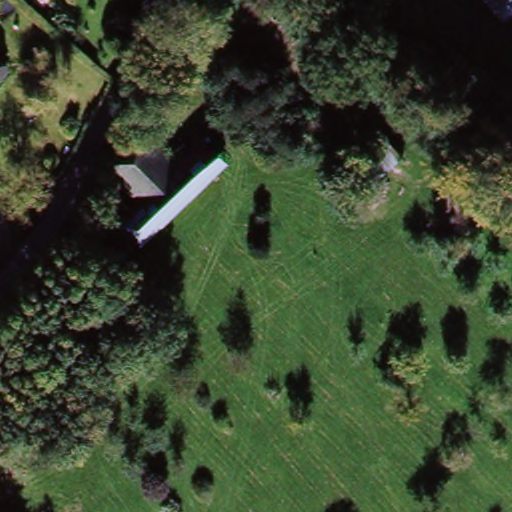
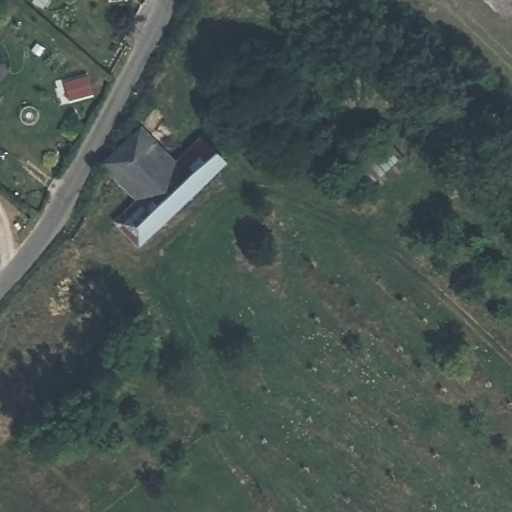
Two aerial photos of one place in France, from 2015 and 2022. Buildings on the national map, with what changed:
unchanged [(69,0),(72,0),(72,1),(69,0)]
unchanged [(485,0),(512,0),(512,4),(496,16),(485,0)]
unchanged [(7,71),(0,78),(0,64),(7,71)]
unchanged [(142,206),(103,168),(137,130),(177,170),(142,206)]
unchanged [(410,161),(393,177),(362,147),(377,133),(410,161)]
unchanged [(205,142),(222,159),(142,243),(123,226),(142,206),(177,170),(205,142)]

